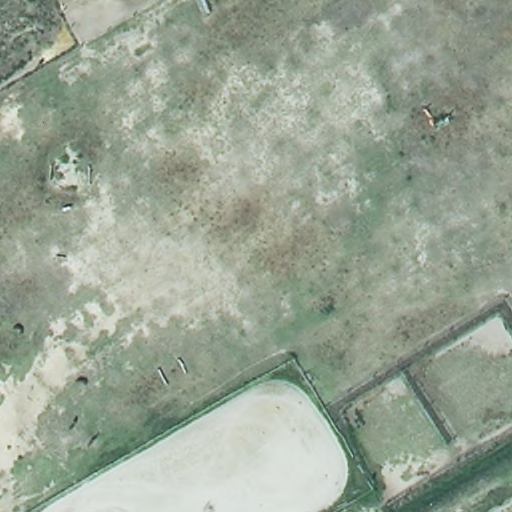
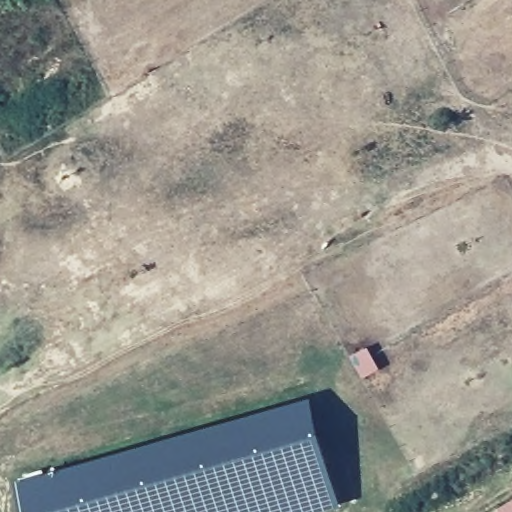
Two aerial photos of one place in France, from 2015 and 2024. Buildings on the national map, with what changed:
new [(323,512),(24,512),(15,480),(311,396),(342,506),(323,512)]

